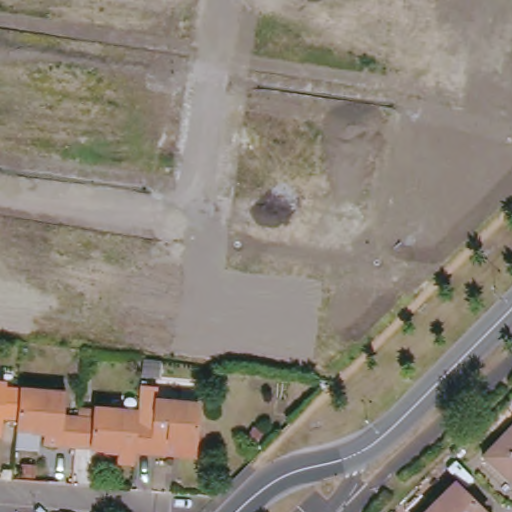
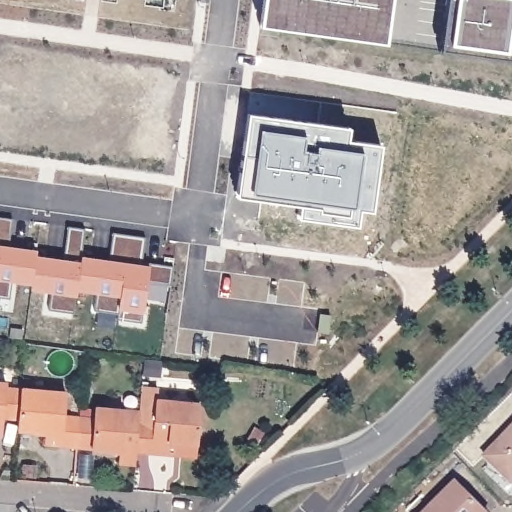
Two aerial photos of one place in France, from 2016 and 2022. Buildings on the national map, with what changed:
new [(264,0),(389,0),(384,42),(261,26),(264,0)]
new [(441,50),(447,0),(512,0),(512,51),(511,59),(441,50)]
new [(350,141),(383,147),(376,213),(363,210),(361,230),(299,224),(302,208),(237,197),(251,115),(352,129),(350,141)]
new [(147,300),(142,325),(118,325),(120,311),(95,310),(97,295),(77,292),(74,313),(50,305),(52,295),(32,293),(32,286),(9,283),(7,297),(0,296),(0,218),(10,220),(11,247),(38,250),(38,258),(64,260),(67,229),(81,229),(81,257),(111,261),(113,234),(144,238),(142,263),(172,268),(166,305),(147,300)]
new [(321,313),(332,316),(330,335),(319,335),(321,313)]
unchanged [(10,387),(24,389),(22,413),(8,412),(7,435),(0,435),(0,384),(10,385),(10,387)]
unchanged [(22,413),(24,389),(70,393),(68,415),(82,417),(80,447),(50,445),(51,433),(22,430),(22,413)]
unchanged [(143,420),(159,420),(160,400),(204,405),(200,456),(141,452),(143,420)]
unchanged [(82,417),(99,418),(99,407),(144,412),(143,420),(141,452),(140,464),(122,463),(124,451),(80,447),(82,417)]
unchanged [(511,484),(486,459),(512,433),(512,485),(511,484)]
unchanged [(482,512),(431,512),(457,486),(482,512)]

